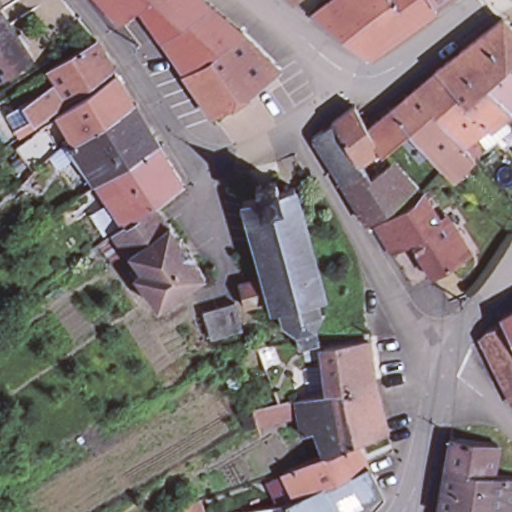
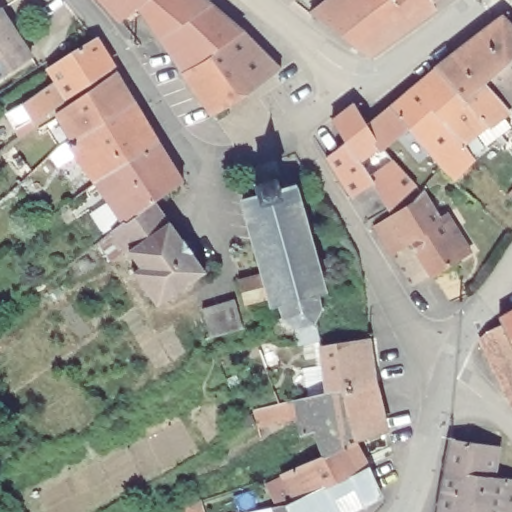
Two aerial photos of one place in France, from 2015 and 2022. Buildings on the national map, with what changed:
unchanged [(106,5),(101,0),(112,0),(106,5)]
unchanged [(112,0),(150,0),(140,7),(120,23),(106,5),(112,0)]
unchanged [(150,0),(205,0),(243,32),(226,44),(227,46),(185,74),(159,36),(140,7),(150,0)]
unchanged [(430,1),(435,7),(411,26),(369,57),(311,15),(329,0),(432,0),(430,1)]
unchanged [(1,6),(28,47),(32,55),(0,75),(0,7),(1,6)]
unchanged [(471,155),(466,161),(450,177),(435,162),(404,126),(378,147),(375,141),(356,157),(355,157),(330,117),(350,101),(364,122),(386,104),(432,65),(498,13),(512,28),(512,48),(480,77),(503,105),(493,113),(502,124),(480,142),(470,132),(461,139),(467,146),(473,153),(471,155)]
unchanged [(227,46),(226,44),(243,32),(277,66),(280,70),(251,90),(213,115),(185,74),(227,46)]
unchanged [(50,70),(96,41),(114,69),(69,100),(48,115),(35,122),(25,104),(57,81),(50,70)]
unchanged [(512,48),(512,96),(509,99),(510,100),(503,105),(480,77),(512,48)]
unchanged [(57,116),(117,72),(135,102),(73,142),(72,141),(57,116)]
unchanged [(60,148),(66,144),(72,141),(73,142),(135,102),(160,144),(99,183),(96,185),(75,156),(58,167),(51,157),(56,152),(60,148)]
unchanged [(330,117),(355,157),(356,157),(360,163),(336,177),(308,132),(330,117)]
unchanged [(160,144),(182,180),(183,182),(155,202),(125,225),(99,183),(160,144)]
unchanged [(360,163),(365,172),(387,156),(411,182),(387,204),(363,219),(336,177),(360,163)]
unchanged [(295,343),(291,327),(288,332),(272,321),(275,318),(279,316),(275,305),(268,307),(265,297),(240,304),(233,282),(259,275),(239,203),(238,201),(253,196),(250,185),(271,179),(275,190),(290,186),(319,294),(312,296),(314,307),(320,307),(319,311),(314,311),(310,321),(316,338),(317,343),(310,345),(310,340),(299,342),(300,347),(295,348),(295,343)]
unchanged [(409,197),(417,189),(434,214),(441,209),(451,224),(465,246),(427,271),(405,237),(386,247),(373,226),(373,219),(409,197)]
unchanged [(125,225),(155,202),(170,223),(130,252),(115,232),(125,225)]
unchanged [(140,265),(130,252),(170,223),(206,272),(158,307),(132,270),(140,265)]
unchanged [(198,312),(231,302),(240,328),(206,338),(198,312)]
unchanged [(476,336),(482,327),(497,320),(495,316),(512,306),(512,403),(510,403),(503,391),(476,336)]
unchanged [(317,348),(365,342),(370,382),(324,393),(317,348)]
unchanged [(298,436),(293,401),(291,390),(302,387),(305,397),(324,393),(370,382),(383,432),(352,442),(351,441),(321,457),(321,456),(311,431),(298,436)]
unchanged [(494,443),(490,473),(512,476),(512,512),(435,512),(448,436),(494,443)]
unchanged [(321,456),(321,457),(351,441),(352,442),(365,467),(328,487),(295,503),(280,473),(321,456)]
unchanged [(378,497),(348,512),(341,512),(328,487),(365,467),(378,497)]
unchanged [(284,505),(285,507),(295,503),(328,487),(341,512),(268,512),(267,509),(284,505)]
unchanged [(200,503),(201,512),(185,512),(185,508),(200,503)]
unchanged [(268,512),(252,512),(267,509),(268,512)]

